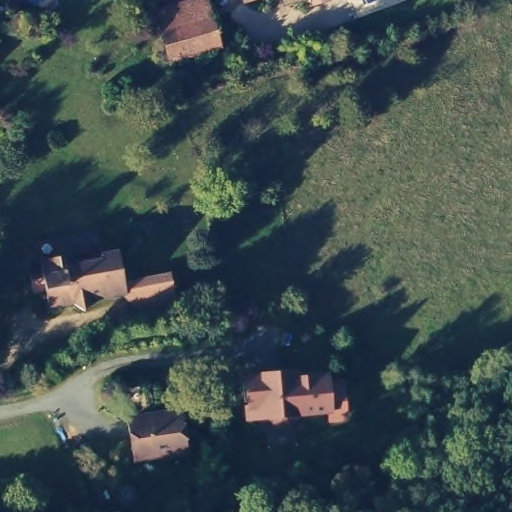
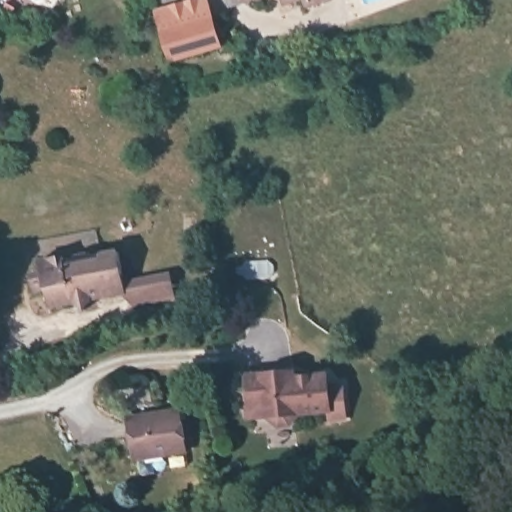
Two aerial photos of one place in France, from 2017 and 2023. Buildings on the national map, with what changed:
unchanged [(155,0),(208,0),(219,35),(170,49),(155,0)]
unchanged [(48,300),(45,285),(33,287),(29,270),(42,267),(40,256),(63,252),(64,257),(118,246),(123,278),(170,269),(176,301),(138,308),(120,287),(91,292),(92,296),(84,306),(73,299),(73,296),(48,300)]
unchanged [(292,367),(293,376),(329,372),(331,413),(245,417),(243,373),(292,367)]
unchanged [(174,407),(181,447),(130,455),(123,415),(174,407)]

